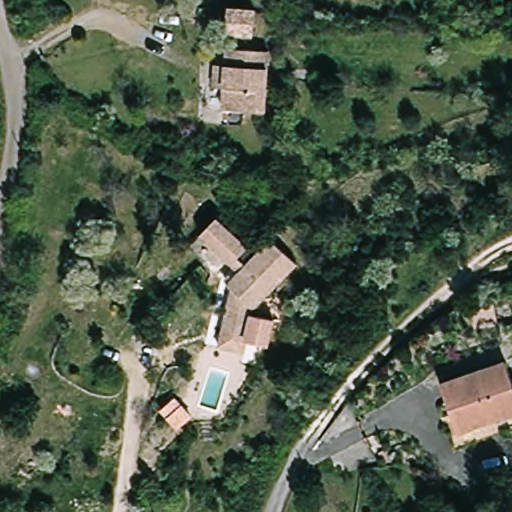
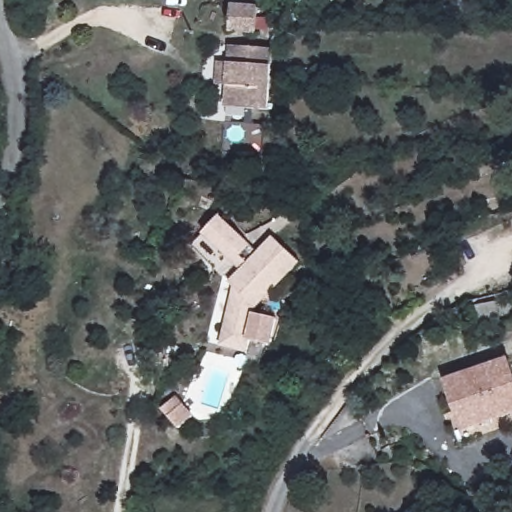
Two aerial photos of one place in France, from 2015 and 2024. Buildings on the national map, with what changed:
unchanged [(234,30),(233,9),(258,8),(259,29),(234,30)]
unchanged [(274,105),(233,107),(231,86),(221,86),(220,63),(231,63),(230,46),(271,44),(274,105)]
unchanged [(275,330),(271,346),(260,343),(250,341),(247,351),(220,344),(233,286),(228,281),(241,268),(203,232),(219,216),(257,253),(274,236),(301,262),(257,307),(256,312),(278,318),(275,330)]
unchanged [(510,363),(512,370),(512,415),(463,430),(448,383),(510,363)]

